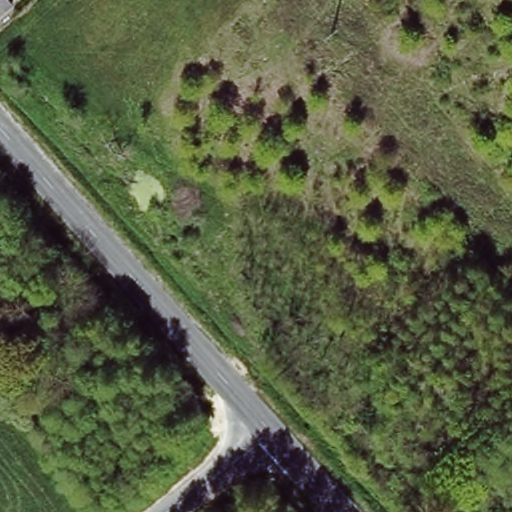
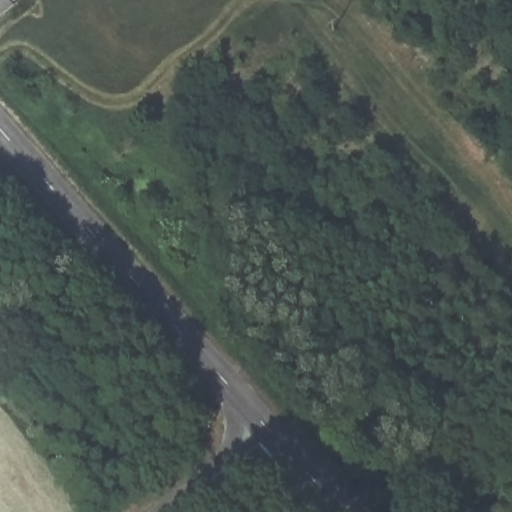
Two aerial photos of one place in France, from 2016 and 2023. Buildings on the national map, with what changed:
unchanged [(0,0),(5,0),(10,6),(0,15),(0,0)]

